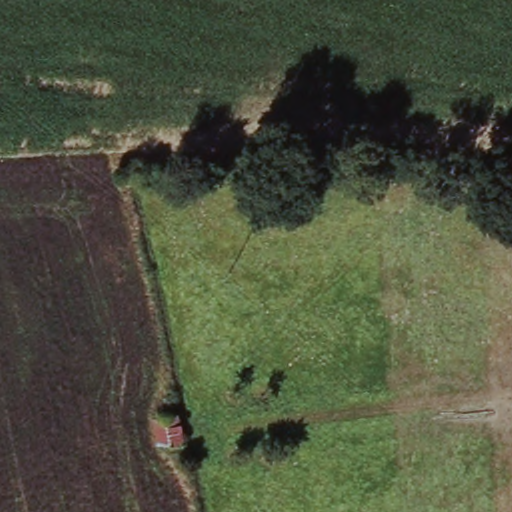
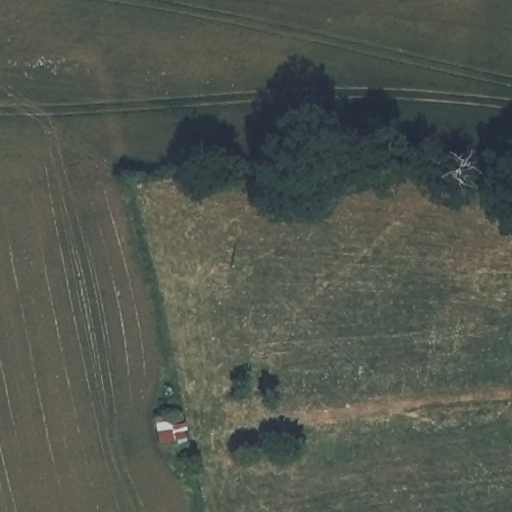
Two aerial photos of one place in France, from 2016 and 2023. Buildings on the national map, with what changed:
unchanged [(169,421),(196,418),(200,439),(173,443),(160,445),(156,423),(169,421)]

